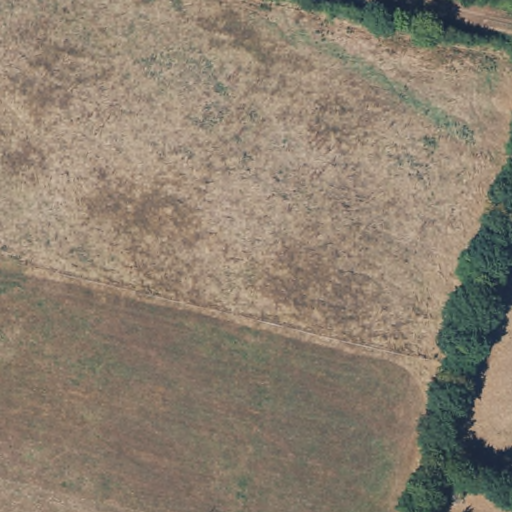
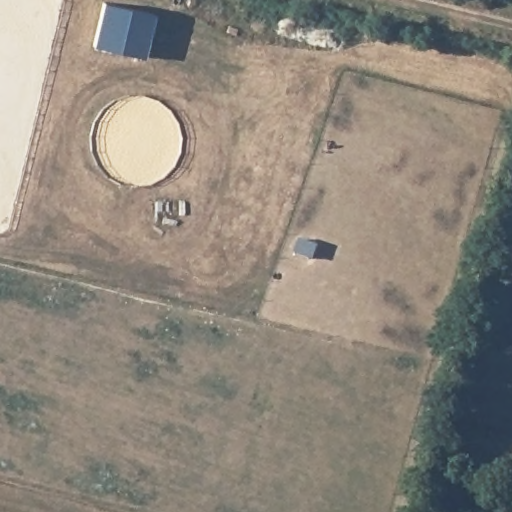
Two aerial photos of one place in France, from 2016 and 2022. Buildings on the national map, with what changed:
new [(101,2),(152,14),(142,57),(90,45),(101,2)]

